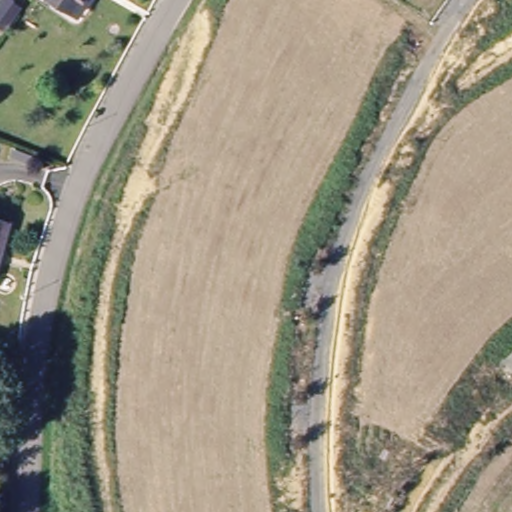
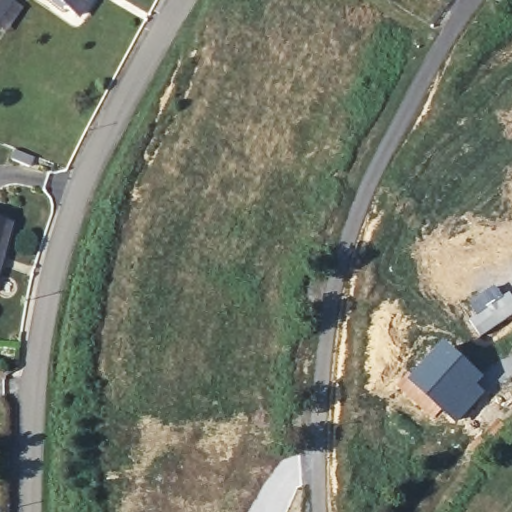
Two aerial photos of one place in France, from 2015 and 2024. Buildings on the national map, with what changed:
unchanged [(88,25),(50,0),(106,0),(88,25)]
unchanged [(0,228),(0,223),(1,223),(0,228)]
new [(493,283),(502,296),(509,291),(512,295),(512,313),(479,336),(467,318),(475,313),(467,301),(493,283)]
new [(445,342),(484,377),(478,385),(485,392),(456,424),(440,411),(433,418),(401,388),(445,342)]

